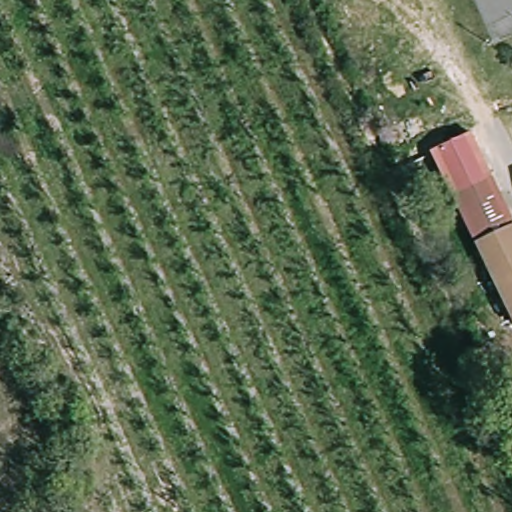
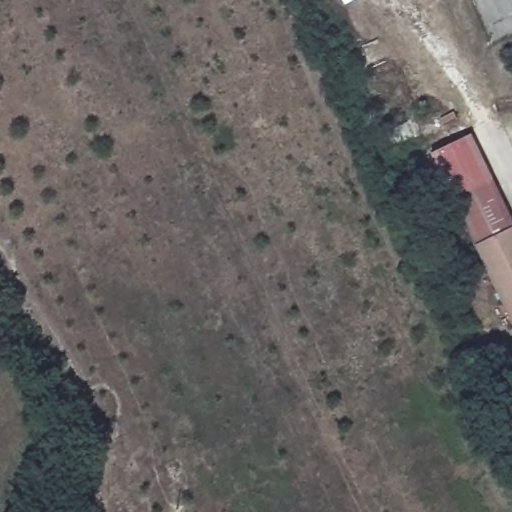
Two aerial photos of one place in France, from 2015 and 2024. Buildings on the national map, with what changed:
unchanged [(453,200),(431,153),(470,135),(492,181),(453,200)]
unchanged [(492,181),(512,221),(512,321),(453,200),(492,181)]

